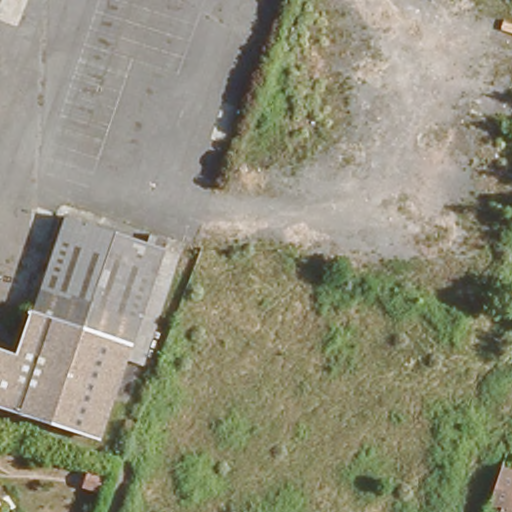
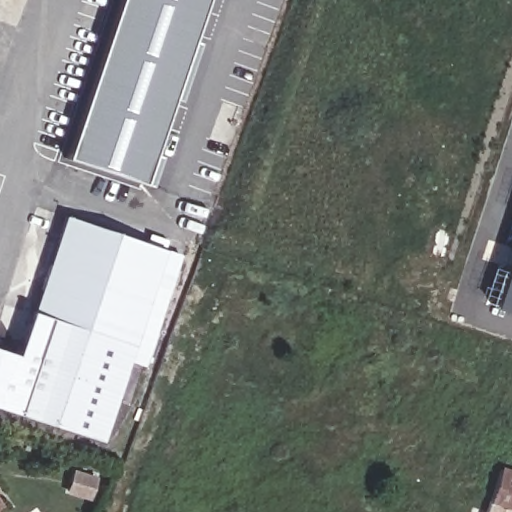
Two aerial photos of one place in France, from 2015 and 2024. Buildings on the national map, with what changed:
new [(142,184),(65,158),(118,0),(203,0),(142,184)]
unchanged [(0,421),(0,354),(11,358),(22,319),(31,323),(62,217),(181,258),(145,365),(130,358),(99,445),(0,421)]
new [(512,232),(512,318),(487,310),(512,232)]
unchanged [(499,474),(512,478),(512,510),(490,503),(499,474)]
unchanged [(512,510),(512,512),(487,512),(490,503),(512,510)]

